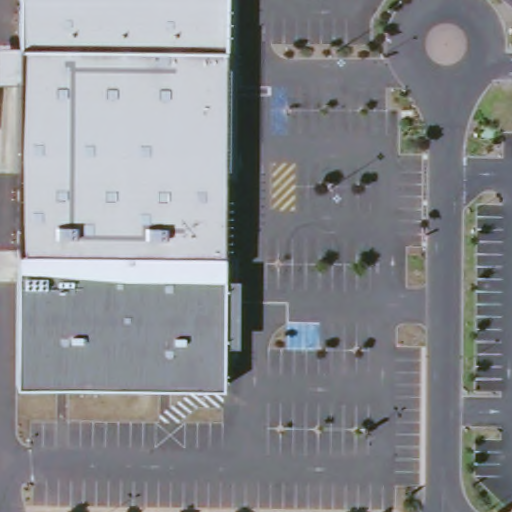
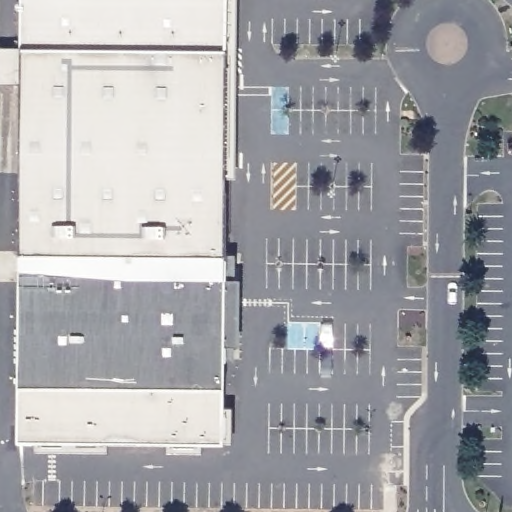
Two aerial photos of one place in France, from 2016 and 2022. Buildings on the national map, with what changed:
unchanged [(227,52),(20,52),(21,0),(227,0),(227,52)]
unchanged [(227,52),(225,257),(19,257),(20,52),(227,52)]
unchanged [(297,206),(297,185),(297,165),(309,165),(309,185),(309,206),(297,206)]
unchanged [(225,257),(225,392),(210,392),(210,397),(200,397),(200,392),(18,392),(19,257),(225,257)]
new [(200,392),(200,397),(210,397),(210,392),(225,392),(220,442),(18,439),(18,392),(200,392)]

